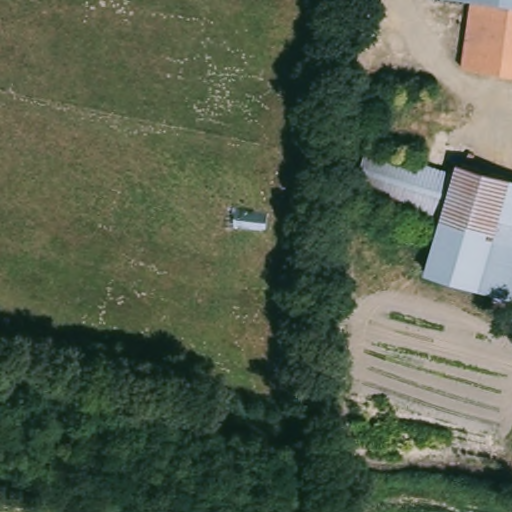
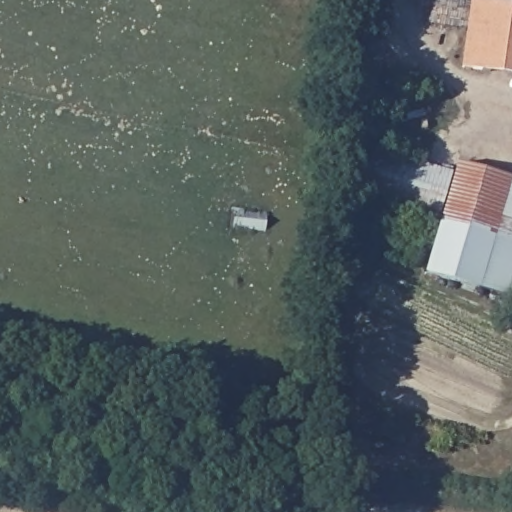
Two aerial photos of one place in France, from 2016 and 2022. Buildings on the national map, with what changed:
unchanged [(512,74),(465,69),(472,0),(488,0),(512,3),(512,74)]
unchanged [(512,0),(512,3),(488,0),(512,0)]
unchanged [(443,219),(358,191),(370,145),(460,170),(462,161),(512,175),(512,295),(428,273),(443,219)]

